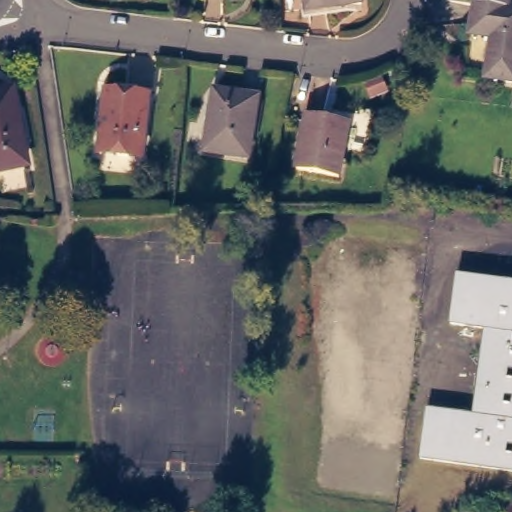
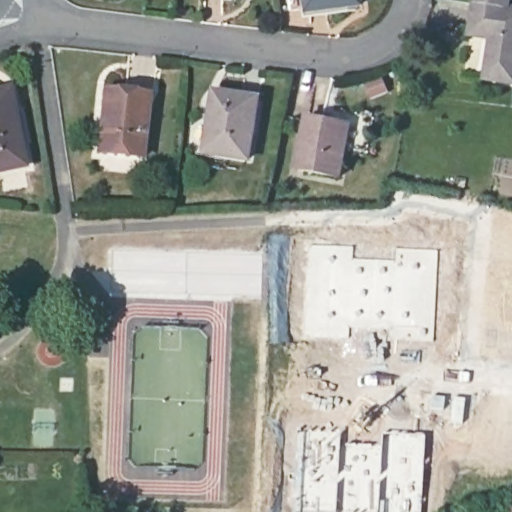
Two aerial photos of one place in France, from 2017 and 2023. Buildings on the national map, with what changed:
unchanged [(315,10),(313,0),(364,0),(365,2),(315,10)]
unchanged [(500,69),(504,29),(479,25),(482,0),(501,0),(512,1),(512,70),(500,69)]
unchanged [(501,0),(512,0),(512,1),(501,0)]
unchanged [(38,159),(0,167),(0,90),(23,86),(38,159)]
unchanged [(265,92),(255,152),(215,146),(225,86),(265,92)]
unchanged [(155,92),(150,152),(107,149),(109,129),(110,111),(113,89),(155,92)]
unchanged [(355,116),(346,168),(305,162),(314,109),(355,116)]
demolished [(429,460),(432,408),(480,410),(483,323),(459,323),(461,271),(512,273),(512,463),(429,460)]

